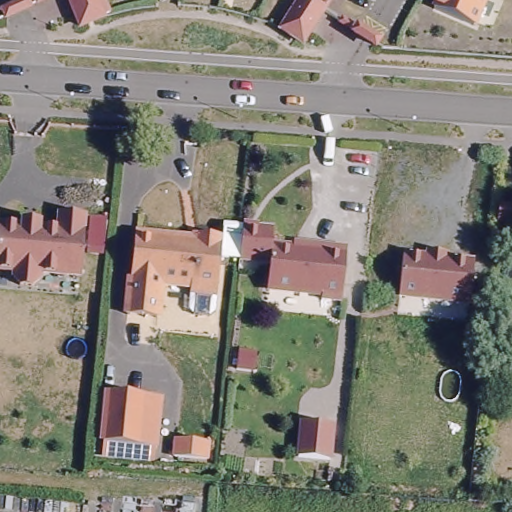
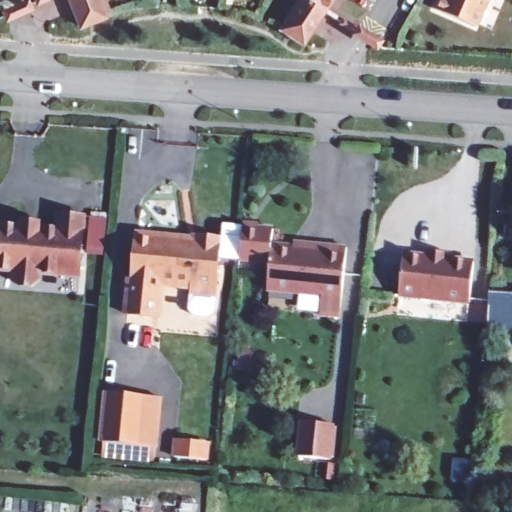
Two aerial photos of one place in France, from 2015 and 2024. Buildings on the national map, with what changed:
unchanged [(92,24),(90,24),(80,1),(80,0),(107,0),(112,15),(92,24)]
unchanged [(308,40),(287,28),(306,0),(335,0),(329,9),(308,40)]
unchanged [(440,8),(444,0),(491,0),(480,25),(440,8)]
unchanged [(512,222),(502,222),(504,204),(512,205),(512,222)]
unchanged [(32,222),(32,217),(50,219),(49,224),(67,225),(69,210),(92,212),(87,270),(47,267),(47,274),(41,281),(28,280),(23,273),(24,265),(4,264),(7,220),(32,222)]
unchanged [(198,240),(200,232),(225,234),(220,297),(192,294),(193,284),(163,281),(159,318),(130,315),(137,234),(198,240)]
unchanged [(333,248),(334,243),(353,245),(348,299),(328,297),(329,292),(275,286),(279,242),(333,248)]
unchanged [(433,247),(452,249),(452,256),(480,259),(476,300),(405,293),(410,252),(433,254),(433,247)]
new [(489,292),(512,294),(512,330),(488,329),(489,292)]
unchanged [(152,450),(139,449),(103,446),(108,396),(143,400),(157,401),(152,450)]
unchanged [(309,421),(340,424),(337,459),(305,456),(309,421)]

